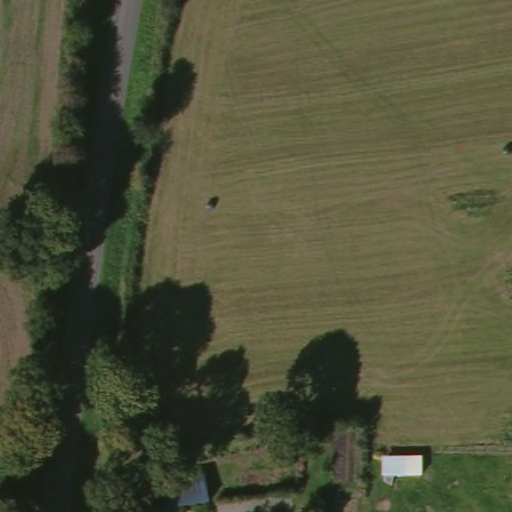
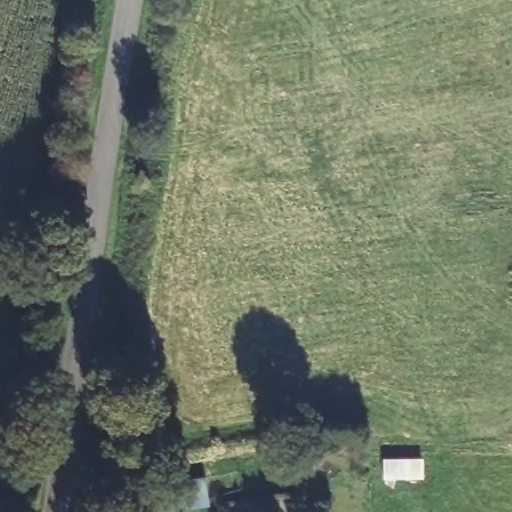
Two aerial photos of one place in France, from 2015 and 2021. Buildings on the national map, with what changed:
unchanged [(148,483),(196,478),(197,502),(148,509),(148,483)]

